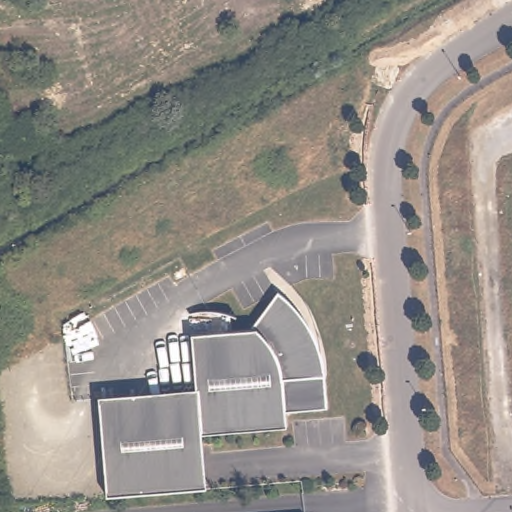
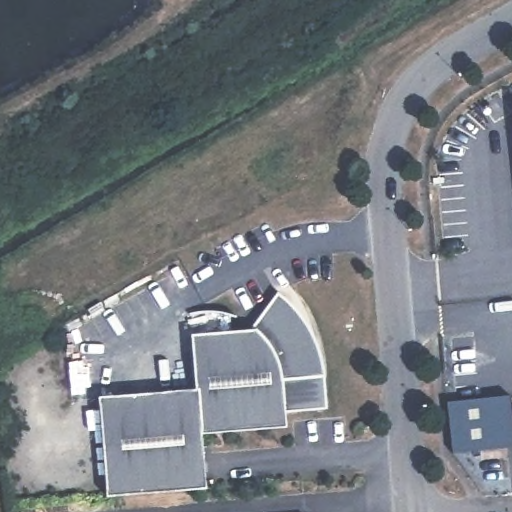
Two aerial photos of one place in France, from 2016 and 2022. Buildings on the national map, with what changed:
unchanged [(286,413),(287,428),(202,436),(207,490),(207,491),(107,499),(98,399),(195,391),(193,366),(188,311),(251,305),(251,303),(280,270),(290,281),(302,299),(312,318),(319,338),(323,359),(325,377),(327,409),(286,413)]
unchanged [(96,375),(193,366),(195,391),(98,399),(96,375)]
new [(447,401),(510,394),(512,413),(512,447),(452,454),(447,401)]

